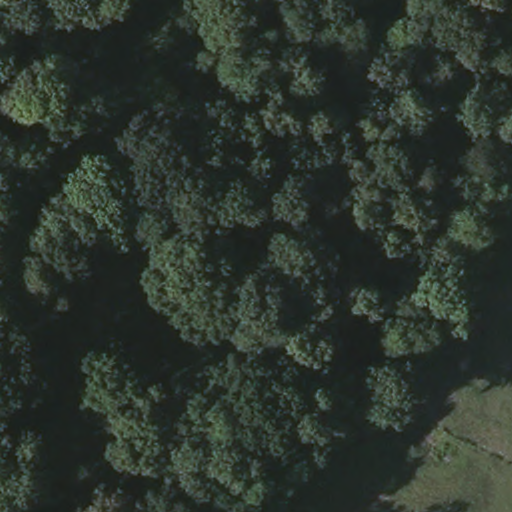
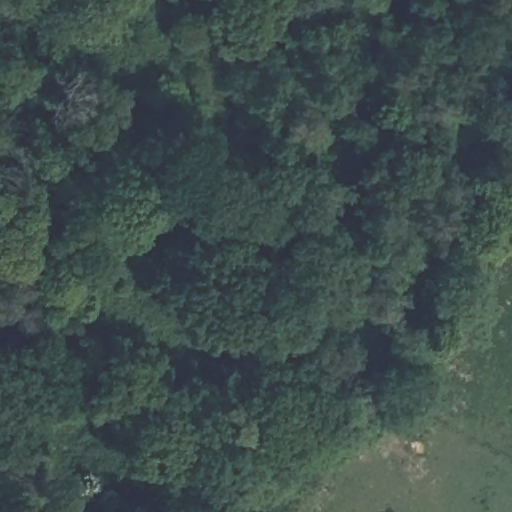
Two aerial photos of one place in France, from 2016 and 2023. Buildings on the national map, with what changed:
[]

